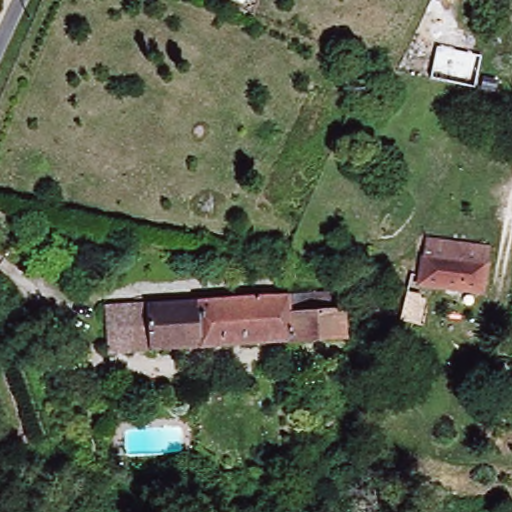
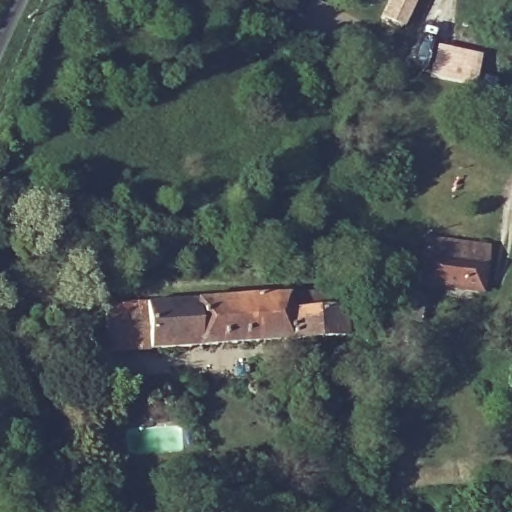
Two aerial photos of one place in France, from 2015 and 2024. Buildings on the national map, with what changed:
new [(413,0),(399,27),(381,18),(390,0),(413,0)]
new [(435,46),(479,56),(472,87),(428,78),(435,46)]
unchanged [(484,254),(486,283),(419,283),(420,239),(484,240),(484,254)]
unchanged [(106,348),(105,302),(326,293),(327,305),(335,305),(336,337),(106,348)]

